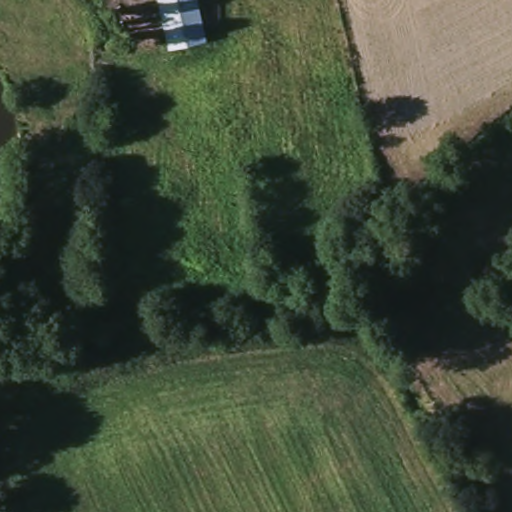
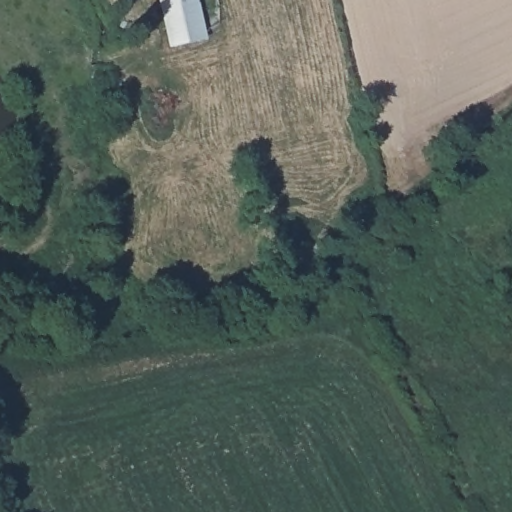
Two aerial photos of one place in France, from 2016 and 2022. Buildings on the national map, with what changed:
unchanged [(157,0),(189,0),(197,35),(200,45),(171,51),(167,38),(157,0)]

